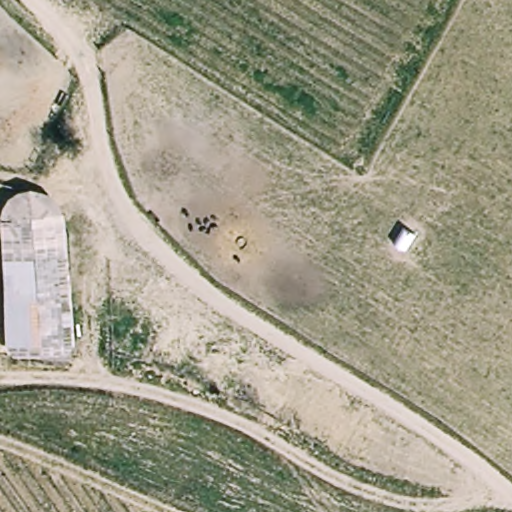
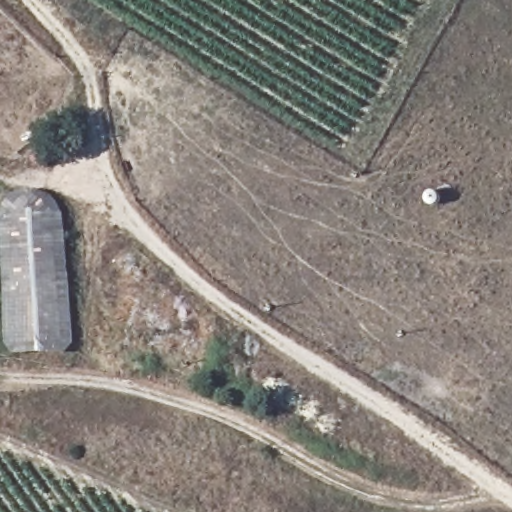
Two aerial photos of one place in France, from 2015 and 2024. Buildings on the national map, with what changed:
unchanged [(12,357),(3,344),(0,264),(0,207),(7,196),(16,191),(26,190),(39,191),(49,195),(57,204),(62,215),(73,344),(65,355),(12,357)]

